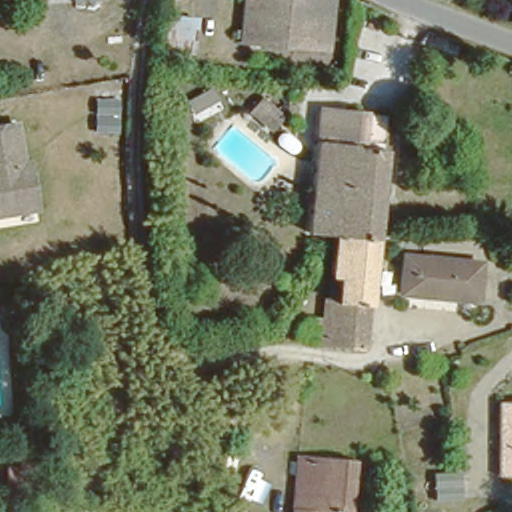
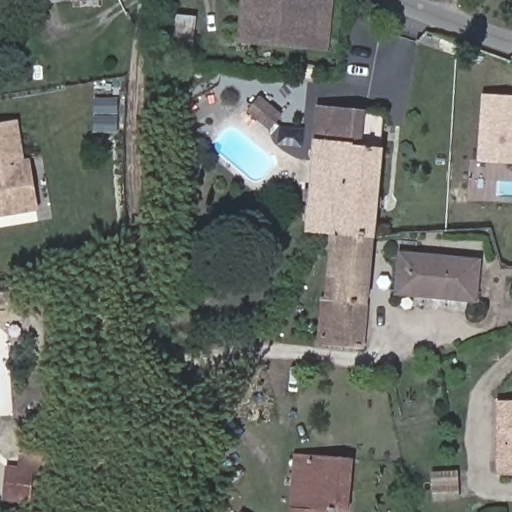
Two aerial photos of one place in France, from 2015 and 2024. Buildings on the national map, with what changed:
unchanged [(89,23),(73,24),(72,0),(87,0),(89,23)]
unchanged [(231,29),(239,30),(240,12),(241,0),(333,0),(327,50),(262,44),(230,41),(231,29)]
unchanged [(190,46),(163,44),(166,16),(194,19),(190,46)]
new [(481,94),(512,96),(512,164),(478,162),(481,94)]
unchanged [(270,127),(247,109),(261,95),(283,112),(270,127)]
unchanged [(330,231),(307,228),(321,107),(390,113),(388,136),(382,136),(373,236),(332,234),(330,231)]
unchanged [(0,211),(0,122),(9,120),(15,160),(22,159),(26,181),(30,205),(0,211)]
unchanged [(361,345),(331,343),(335,274),(330,273),(332,234),(373,236),(361,345)]
unchanged [(473,260),(470,295),(394,290),(397,254),(473,260)]
unchanged [(500,400),(508,400),(512,400),(512,473),(497,472),(500,400)]
unchanged [(348,455),(341,512),(288,512),(294,450),(348,455)]
unchanged [(6,496),(9,469),(21,470),(23,452),(38,454),(35,472),(31,498),(6,496)]
unchanged [(454,472),(454,496),(428,497),(426,473),(454,472)]
unchanged [(245,512),(242,512),(243,510),(245,512)]

